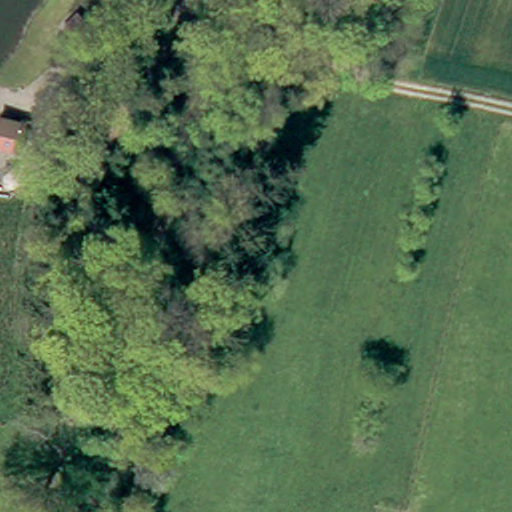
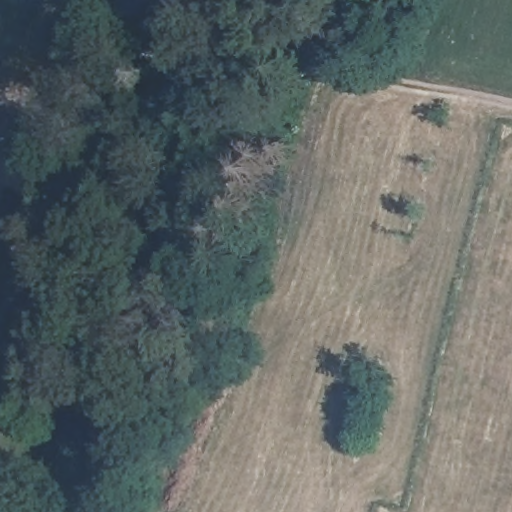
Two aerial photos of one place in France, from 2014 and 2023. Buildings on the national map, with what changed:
unchanged [(80,20),(89,29),(78,40),(69,31),(80,20)]
unchanged [(26,140),(0,135),(0,120),(1,115),(30,121),(26,140)]

